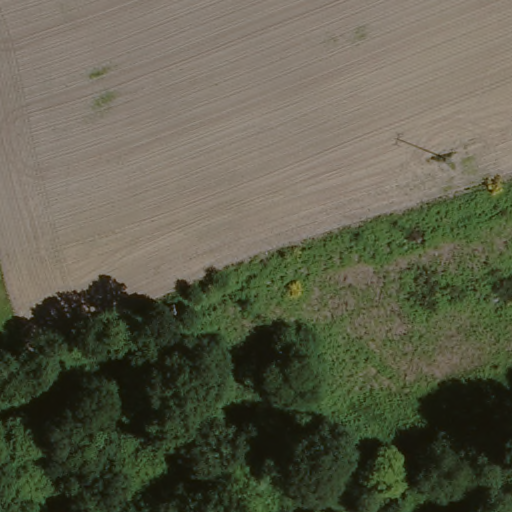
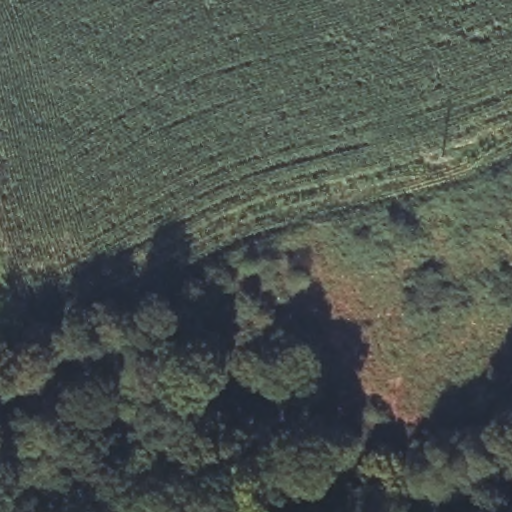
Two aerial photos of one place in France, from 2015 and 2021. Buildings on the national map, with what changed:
[]

